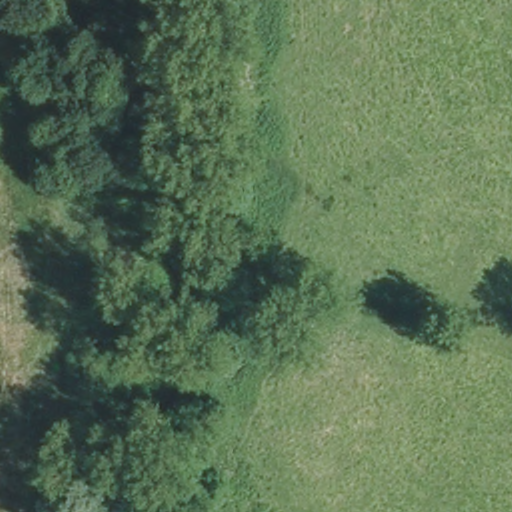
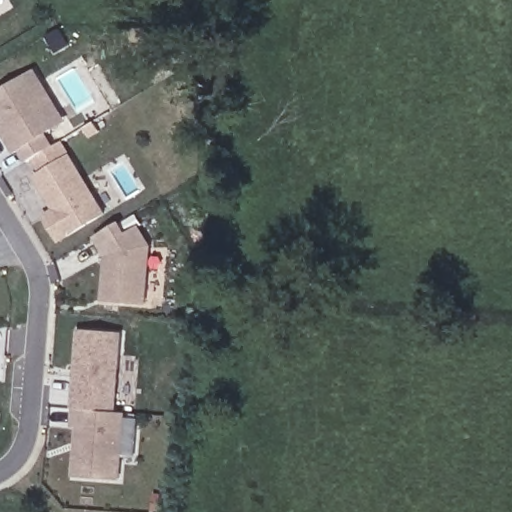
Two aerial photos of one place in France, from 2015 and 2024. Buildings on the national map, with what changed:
new [(50,96),(66,122),(52,130),(46,134),(54,146),(29,162),(22,149),(17,152),(0,125),(0,94),(36,72),(50,96)]
new [(69,156),(105,214),(60,241),(46,217),(57,210),(37,176),(69,156)]
new [(119,223),(127,236),(139,229),(150,247),(145,304),(104,302),(107,257),(96,237),(119,223)]
new [(123,319),(115,413),(78,410),(76,410),(81,315),(123,319)]
new [(115,413),(124,413),(119,479),(83,476),(86,427),(76,426),(78,410),(115,413)]

